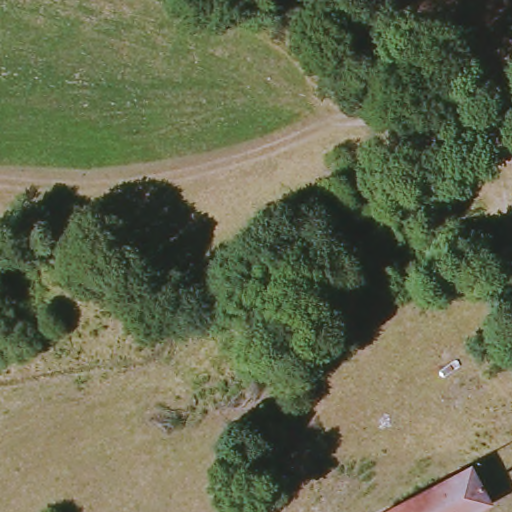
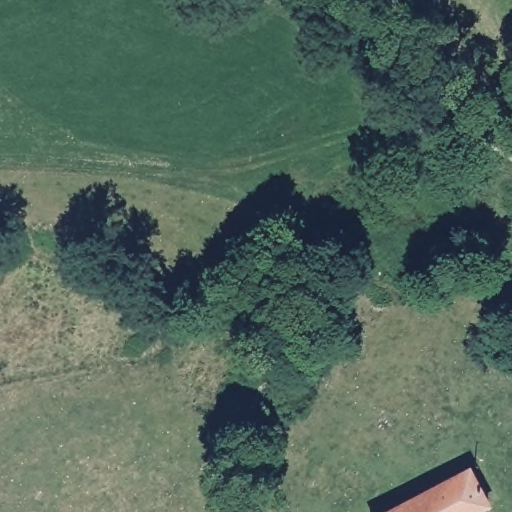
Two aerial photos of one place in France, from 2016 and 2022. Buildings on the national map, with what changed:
unchanged [(491,506),(481,512),(391,512),(469,471),(491,506)]

